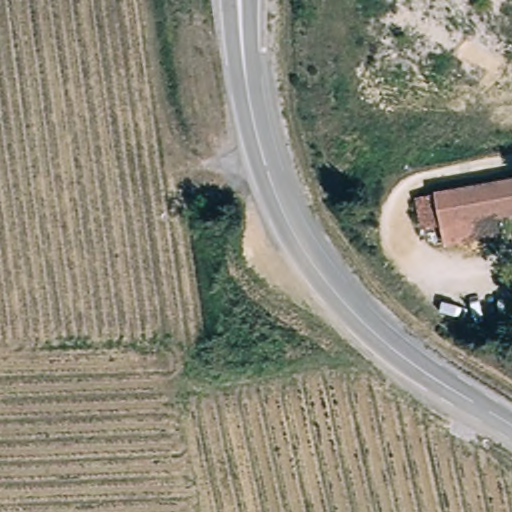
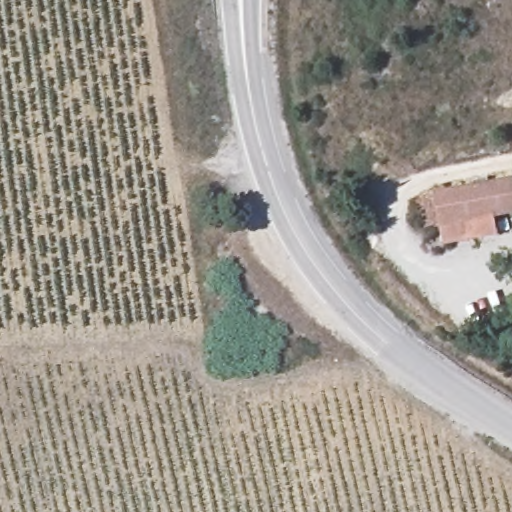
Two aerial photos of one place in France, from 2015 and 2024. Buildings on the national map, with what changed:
unchanged [(495,240),(441,251),(431,200),(512,186),(512,221),(493,225),(495,240)]

